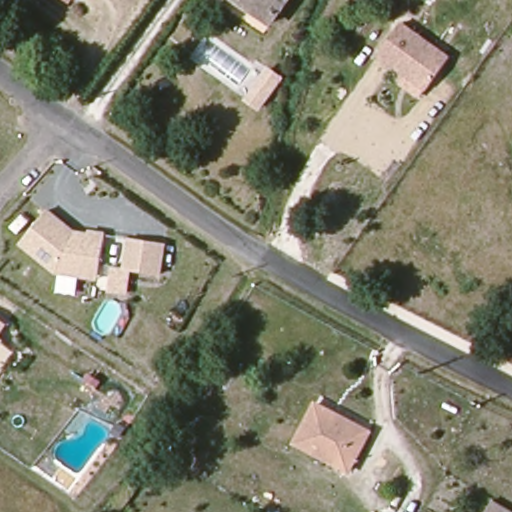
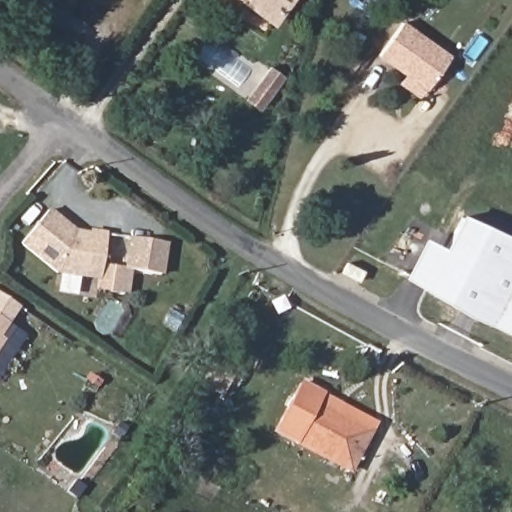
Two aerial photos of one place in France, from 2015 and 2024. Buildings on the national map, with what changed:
unchanged [(60,0),(66,0),(65,3),(60,0)]
unchanged [(238,0),(285,0),(270,22),(238,0)]
unchanged [(377,52),(400,19),(449,55),(426,88),(377,52)]
new [(271,71),(284,79),(275,91),(262,109),(251,100),(262,83),(271,71)]
unchanged [(50,209),(75,230),(165,245),(160,275),(100,266),(97,280),(79,278),(76,295),(57,292),(60,276),(55,276),(20,246),(50,209)]
new [(444,249),(462,214),(512,240),(512,334),(461,313),(403,278),(425,240),(444,249)]
unchanged [(8,327),(0,340),(0,321),(8,327)]
unchanged [(14,351),(0,371),(0,340),(14,351)]
new [(215,359),(234,369),(221,393),(202,383),(215,359)]
unchanged [(366,432),(347,469),(295,440),(315,403),(366,432)]
unchanged [(512,509),(512,512),(490,512),(496,500),(512,509)]

